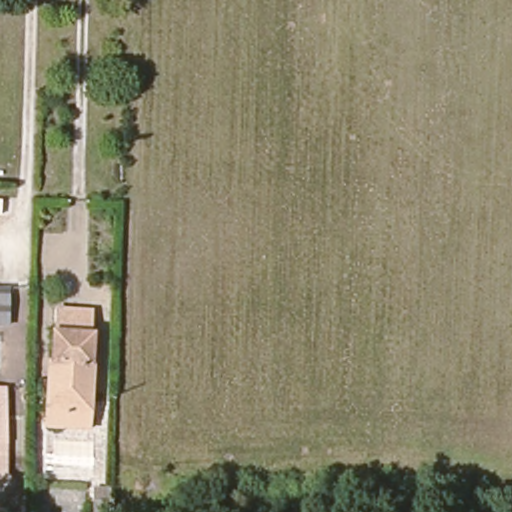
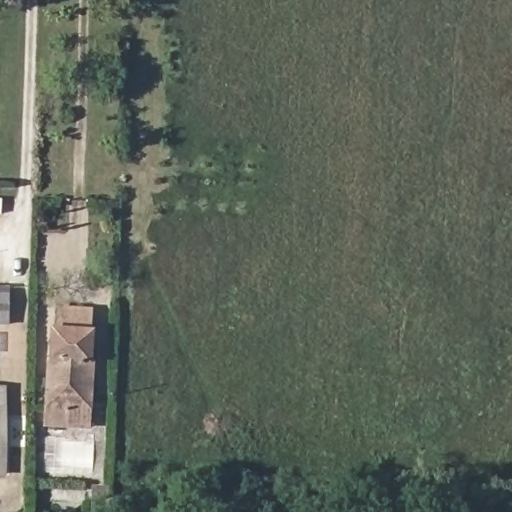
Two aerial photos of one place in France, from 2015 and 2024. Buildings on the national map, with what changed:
unchanged [(6,298),(6,315),(0,315),(0,298),(6,298)]
unchanged [(70,411),(47,410),(47,343),(54,345),(54,315),(91,315),(91,344),(97,345),(95,396),(95,412),(70,411)]
unchanged [(11,473),(0,474),(0,383),(2,383),(11,473)]

